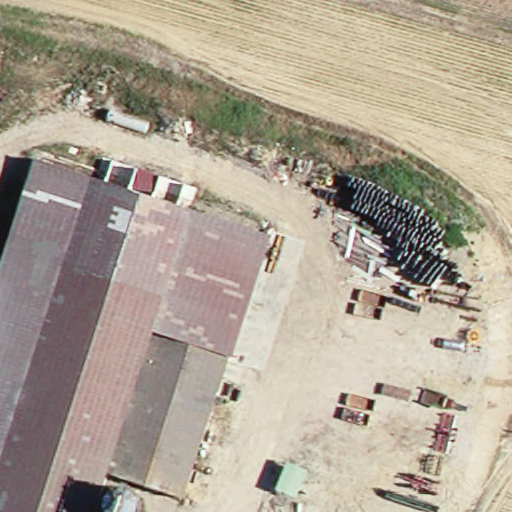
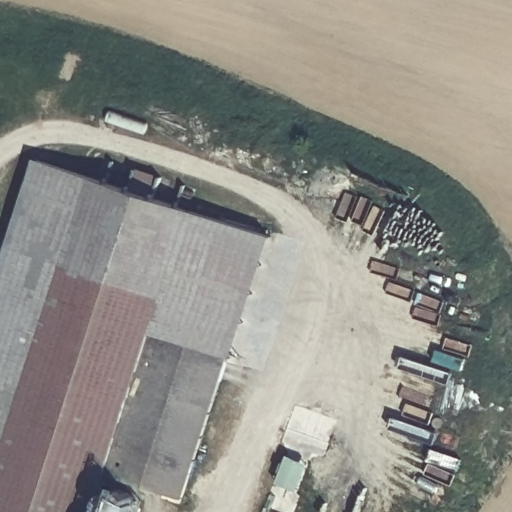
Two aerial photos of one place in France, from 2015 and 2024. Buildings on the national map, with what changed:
unchanged [(10,232),(27,165),(149,198),(261,228),(233,332),(227,352),(223,351),(184,489),(182,496),(110,474),(98,471),(87,512),(0,512),(0,271),(10,232)]
unchanged [(110,474),(119,483),(121,491),(117,502),(112,507),(115,512),(87,512),(98,471),(110,474)]

